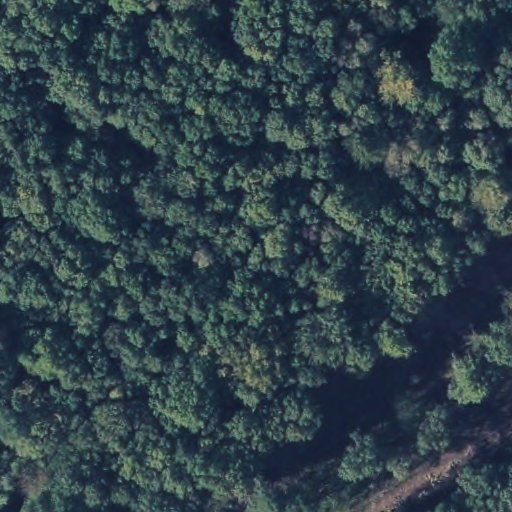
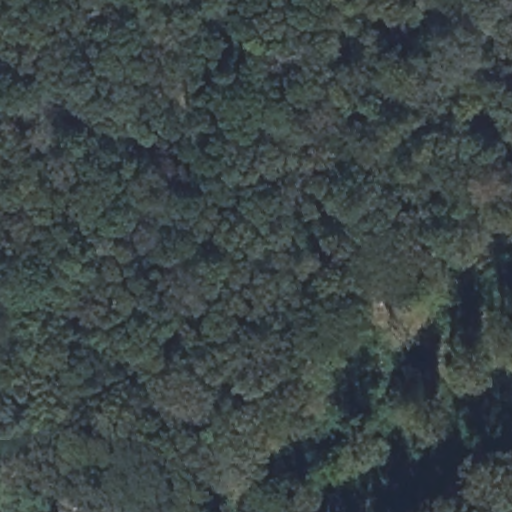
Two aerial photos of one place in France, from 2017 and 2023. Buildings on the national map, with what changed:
unchanged [(30,512),(0,512),(0,505),(12,494),(30,512)]

